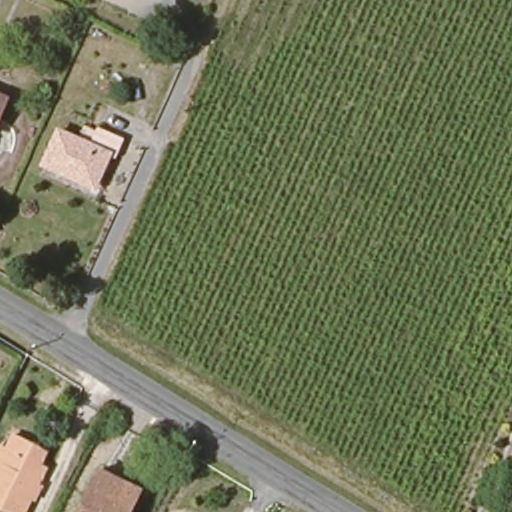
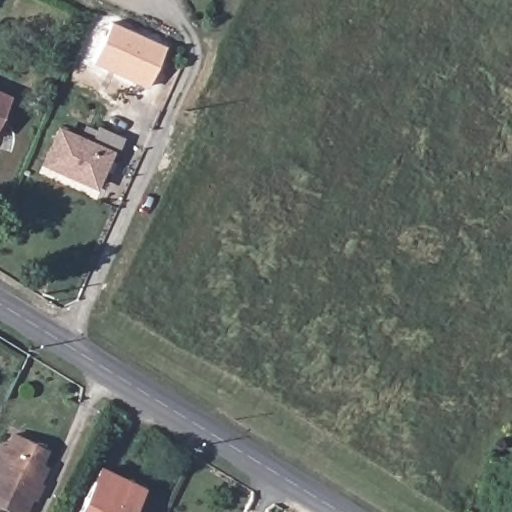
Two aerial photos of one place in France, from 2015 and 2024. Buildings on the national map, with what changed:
new [(90,64),(109,22),(164,47),(144,89),(90,64)]
unchanged [(0,112),(0,96),(7,99),(0,112)]
unchanged [(124,154),(111,149),(99,183),(47,163),(59,127),(93,141),(100,126),(129,139),(124,154)]
unchanged [(40,463),(46,467),(37,486),(32,485),(27,496),(31,498),(23,512),(4,512),(0,510),(0,457),(13,432),(48,448),(40,463)]
unchanged [(127,512),(80,512),(102,469),(139,487),(127,512)]

